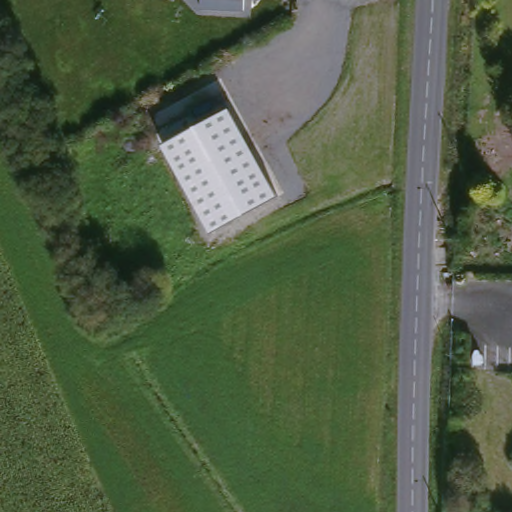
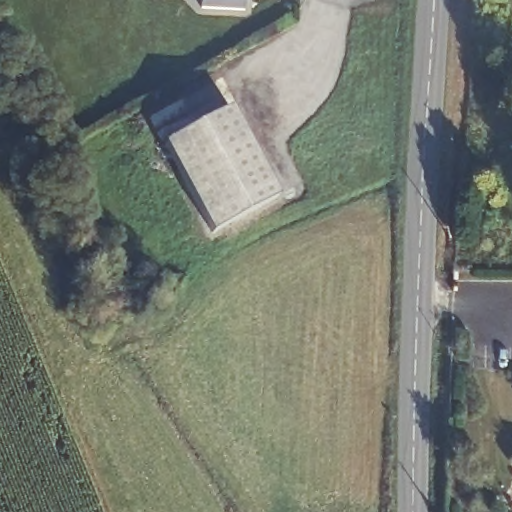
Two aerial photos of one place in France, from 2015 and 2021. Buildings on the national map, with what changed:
unchanged [(164,144),(230,108),(278,196),(211,232),(164,144)]

